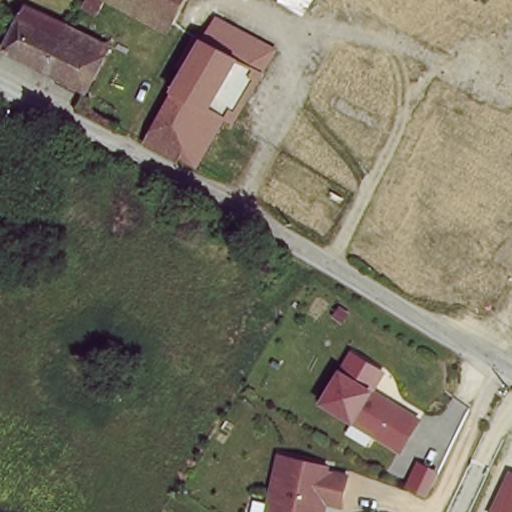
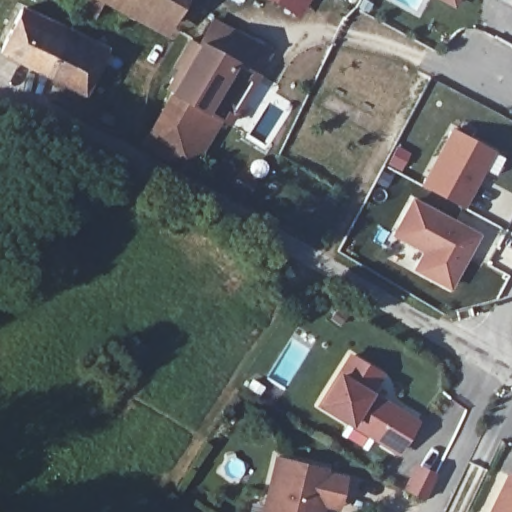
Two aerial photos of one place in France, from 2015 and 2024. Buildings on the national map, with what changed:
unchanged [(162,36),(102,4),(92,18),(75,10),(81,0),(184,0),(162,36)]
unchanged [(266,0),(300,0),(291,15),(266,0)]
new [(460,3),(455,0),(462,0),(460,3)]
new [(507,0),(512,0),(512,3),(507,0)]
unchanged [(32,70),(2,54),(27,5),(46,14),(40,26),(51,32),(32,70)]
unchanged [(207,9),(275,51),(262,75),(239,61),(187,30),(207,9)]
unchanged [(206,116),(180,100),(155,84),(187,30),(239,61),(206,116)]
unchanged [(102,58),(80,95),(32,70),(51,32),(102,58)]
unchanged [(228,130),(206,116),(239,61),(262,75),(228,130)]
unchanged [(157,141),(130,124),(155,84),(180,100),(157,141)]
unchanged [(206,116),(182,155),(157,141),(180,100),(206,116)]
new [(464,206),(420,184),(450,127),(493,151),(464,206)]
new [(400,233),(418,200),(482,236),(453,287),(420,268),(430,250),(400,233)]
unchanged [(383,372),(374,387),(417,415),(399,450),(318,401),(347,349),(383,372)]
unchanged [(332,473),(345,474),(340,505),(326,504),(325,512),(262,512),(273,451),(332,462),(332,473)]
unchanged [(490,512),(507,470),(512,472),(512,512),(490,512)]

